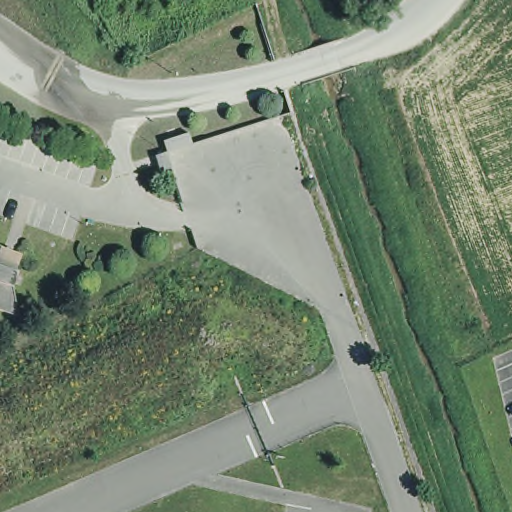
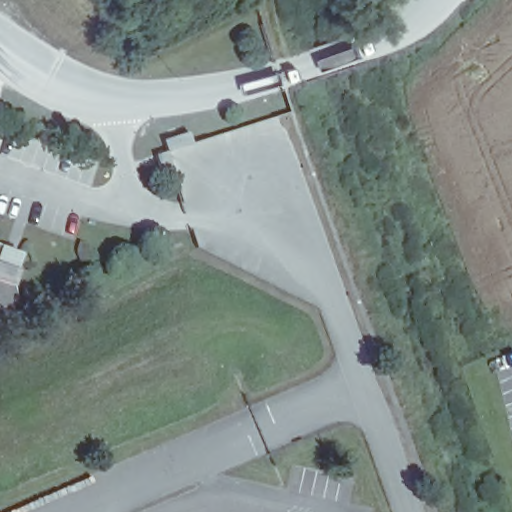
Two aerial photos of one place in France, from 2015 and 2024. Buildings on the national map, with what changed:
unchanged [(155,135),(151,124),(174,117),(178,129),(155,135)]
unchanged [(0,311),(0,243),(24,254),(12,285),(18,317),(0,311)]

